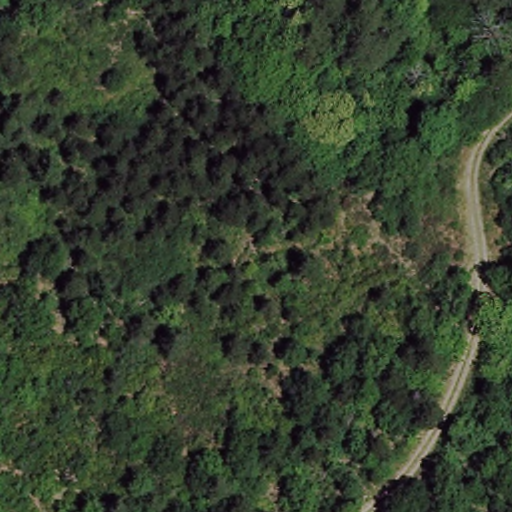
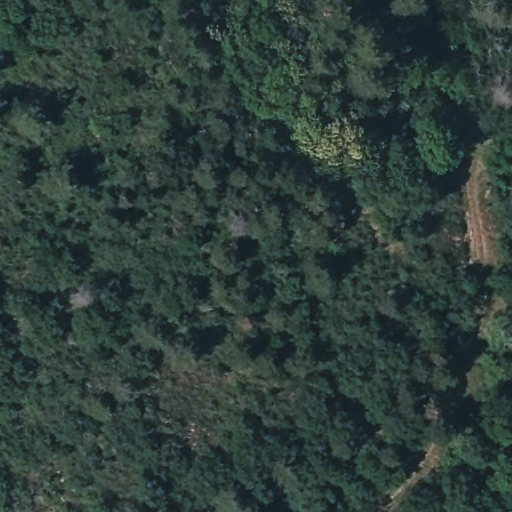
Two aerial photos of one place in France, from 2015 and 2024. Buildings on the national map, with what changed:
[]

